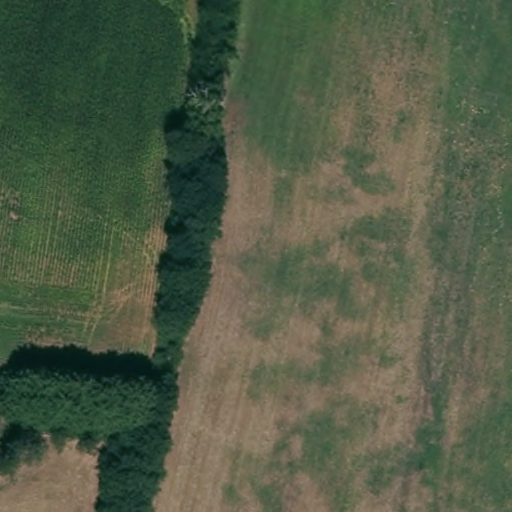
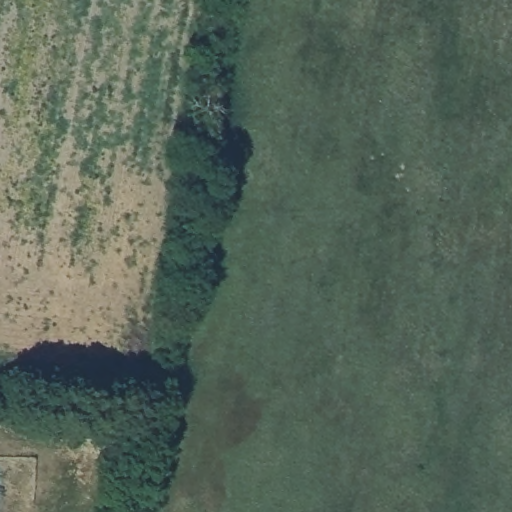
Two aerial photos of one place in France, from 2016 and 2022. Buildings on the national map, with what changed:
[]

